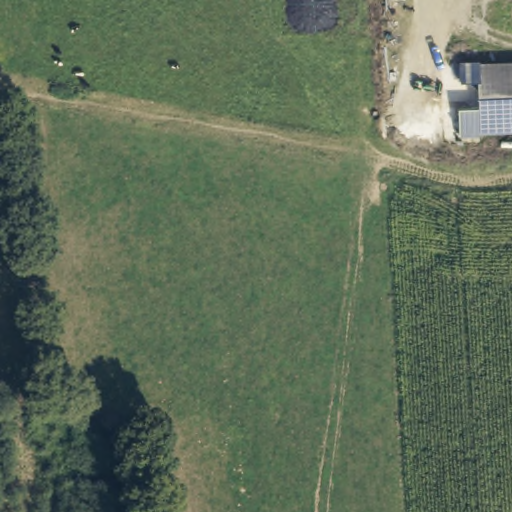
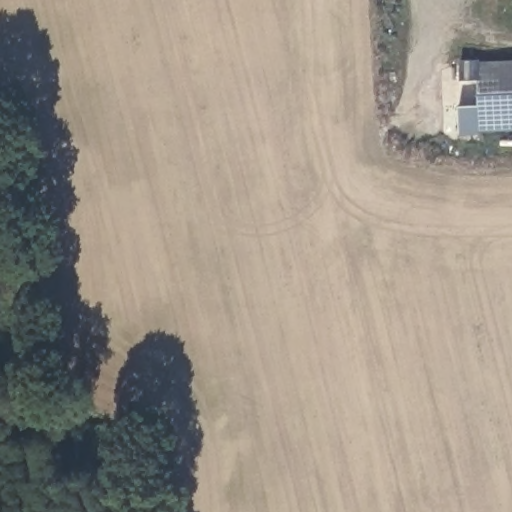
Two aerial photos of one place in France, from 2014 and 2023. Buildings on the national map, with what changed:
unchanged [(460,108),(480,107),(479,69),(512,68),(512,128),(471,130),(472,138),(461,138),(461,130),(460,108)]

